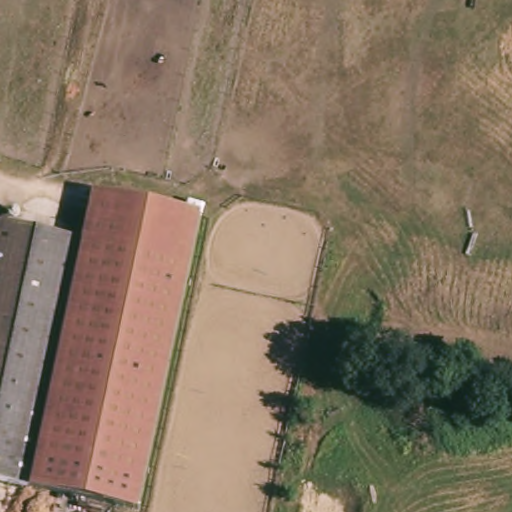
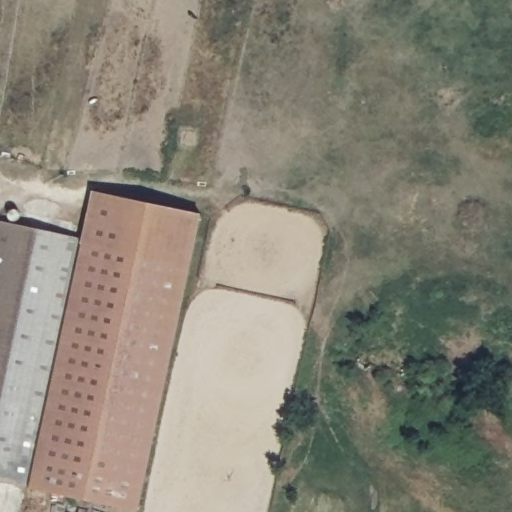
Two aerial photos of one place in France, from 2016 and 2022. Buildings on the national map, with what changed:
unchanged [(83,234),(92,189),(198,212),(135,506),(93,494),(146,251),(83,234)]
unchanged [(146,251),(93,494),(69,489),(17,479),(0,475),(0,238),(5,218),(83,234),(146,251)]

